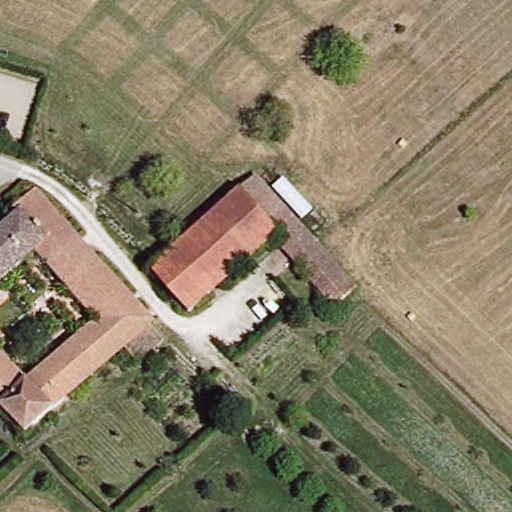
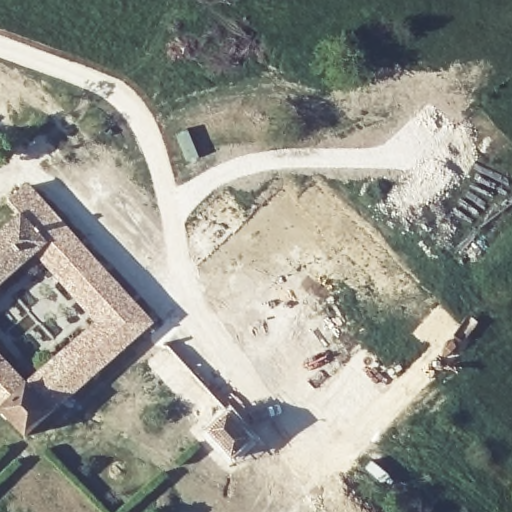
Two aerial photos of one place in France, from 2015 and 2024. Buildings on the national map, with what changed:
demolished [(138,269),(244,172),(356,288),(339,302),(273,238),(180,317),(138,269)]
unchanged [(41,452),(0,407),(0,354),(33,390),(102,325),(44,262),(0,302),(0,246),(24,226),(20,217),(40,202),(159,336),(41,452)]

